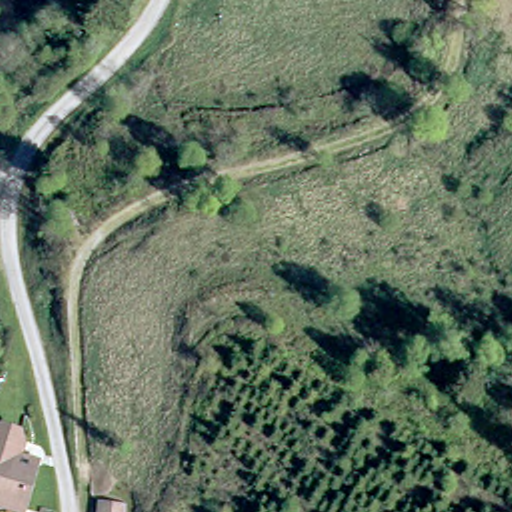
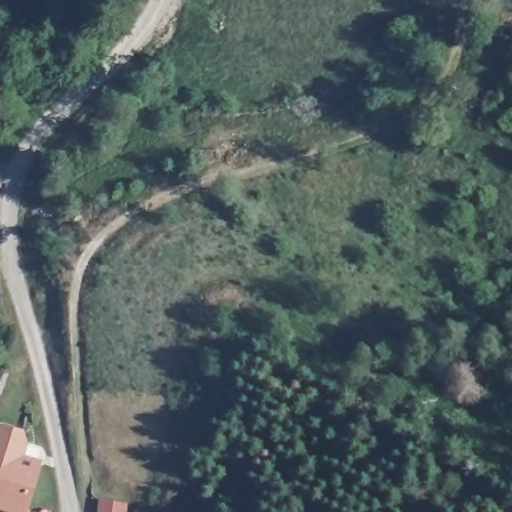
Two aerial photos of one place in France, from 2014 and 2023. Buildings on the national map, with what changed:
unchanged [(0,512),(0,443),(29,451),(25,464),(37,467),(23,512),(0,512)]
unchanged [(126,512),(100,512),(104,494),(129,499),(126,512)]

